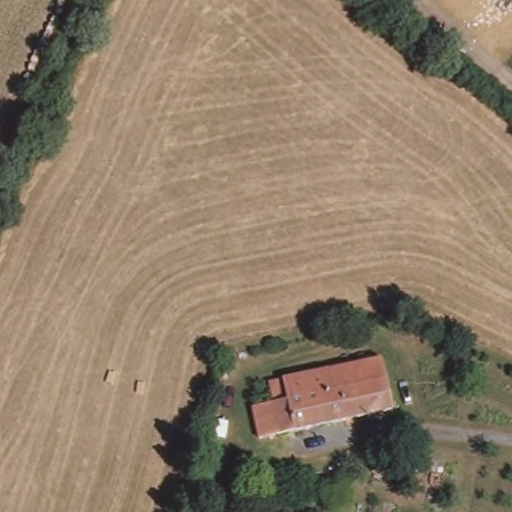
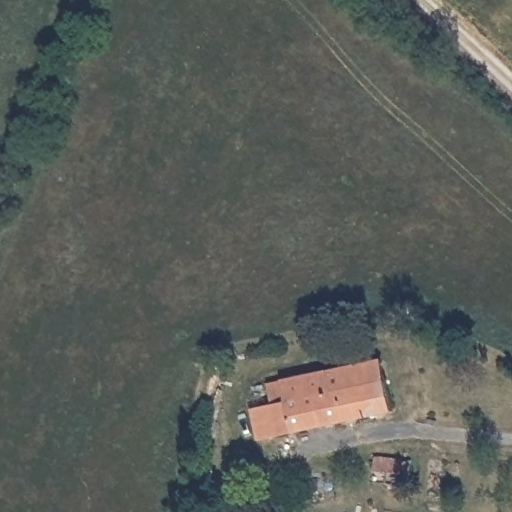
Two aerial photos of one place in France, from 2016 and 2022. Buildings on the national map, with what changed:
unchanged [(271,403),(268,387),(299,380),(305,378),(382,365),(391,411),(262,433),(257,434),(252,406),(256,405),(271,403)]
unchanged [(383,480),(385,462),(420,468),(417,485),(383,480)]

